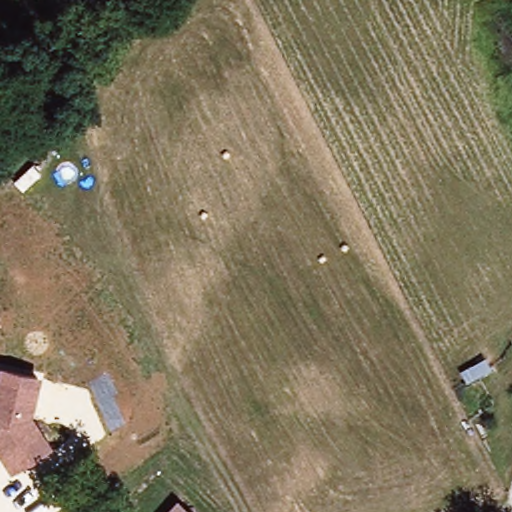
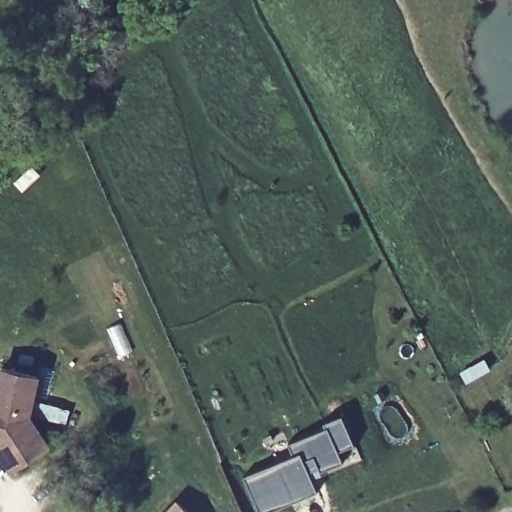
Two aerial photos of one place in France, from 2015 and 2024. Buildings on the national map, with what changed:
unchanged [(40,372),(32,414),(51,446),(11,471),(0,454),(0,365),(40,372)]
new [(289,444),(328,428),(326,422),(343,415),(354,441),(337,449),(343,460),(310,475),(317,490),(266,512),(258,512),(244,477),(293,455),(289,444)]
unchanged [(161,512),(174,497),(192,512),(161,512)]

